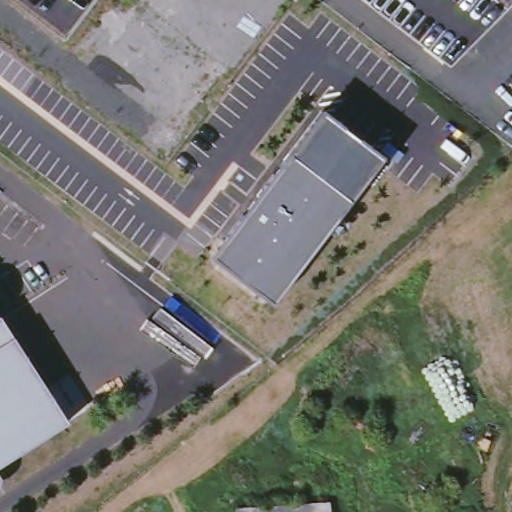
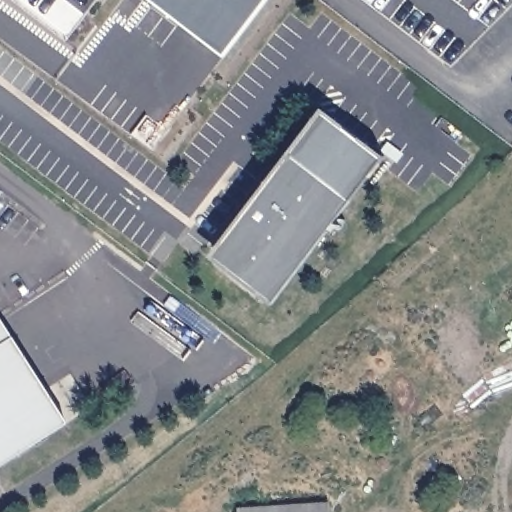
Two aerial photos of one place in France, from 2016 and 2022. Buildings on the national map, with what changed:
new [(148,0),(266,0),(222,57),(148,0)]
unchanged [(322,114),(382,159),(352,202),(291,157),(322,114)]
unchanged [(352,202),(272,303),(213,258),(291,157),(352,202)]
unchanged [(72,427),(0,471),(0,321),(3,319),(72,427)]
unchanged [(1,487),(0,490),(0,480),(1,483),(1,487)]
unchanged [(243,510),(334,503),(335,512),(243,512),(243,510)]

